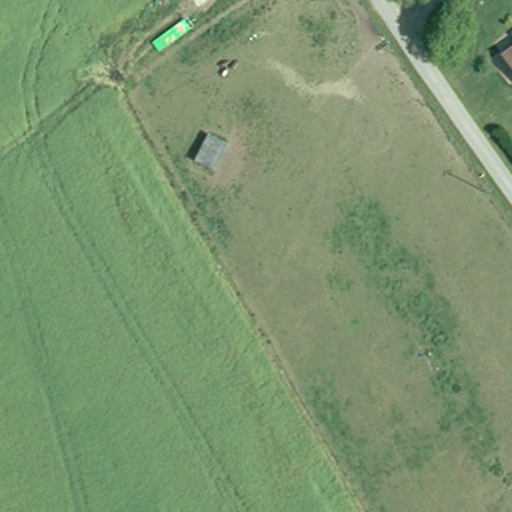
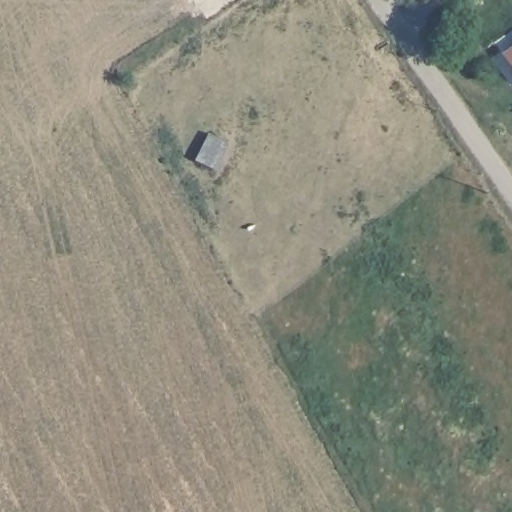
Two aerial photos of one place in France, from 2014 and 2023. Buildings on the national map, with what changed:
unchanged [(507,60),(512,56),(512,67),(507,60)]
unchanged [(212,138),(230,149),(216,170),(197,163),(212,138)]

